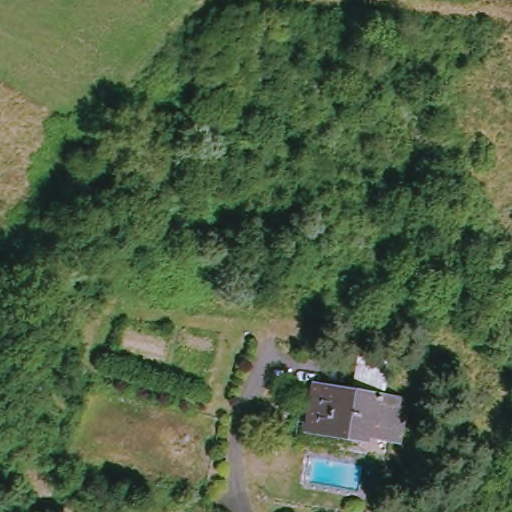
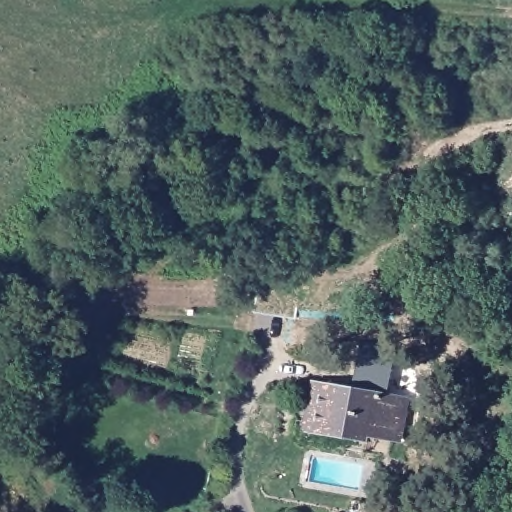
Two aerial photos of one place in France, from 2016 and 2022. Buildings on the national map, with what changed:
unchanged [(43,352),(67,329),(82,345),(58,367),(43,352)]
unchanged [(362,433),(360,437),(302,428),(309,384),(346,390),(352,352),(382,357),(375,395),(398,400),(392,437),(362,433)]

